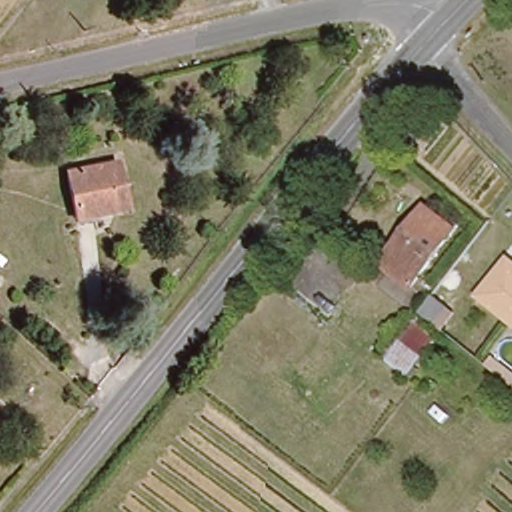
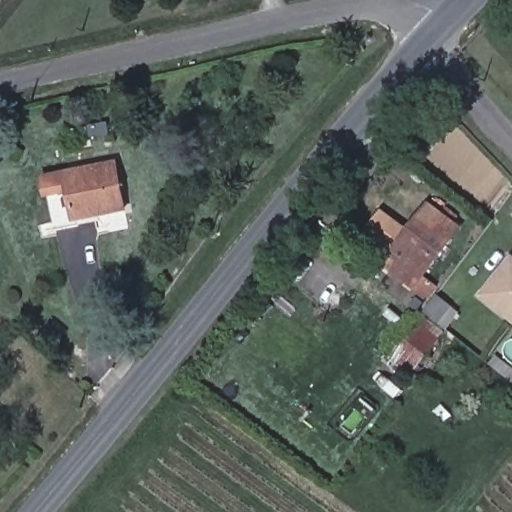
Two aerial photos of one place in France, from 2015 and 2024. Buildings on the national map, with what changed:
unchanged [(125,206),(76,215),(67,165),(117,157),(125,206)]
unchanged [(458,229),(412,287),(381,263),(428,205),(458,229)]
unchanged [(507,257),(512,261),(512,319),(478,293),(507,257)]
unchanged [(436,321),(423,311),(436,295),(449,304),(436,321)]
unchanged [(384,354),(412,319),(418,311),(443,331),(437,338),(409,373),(384,354)]

